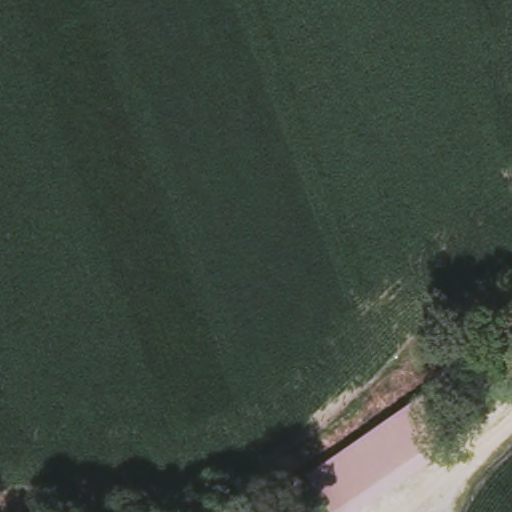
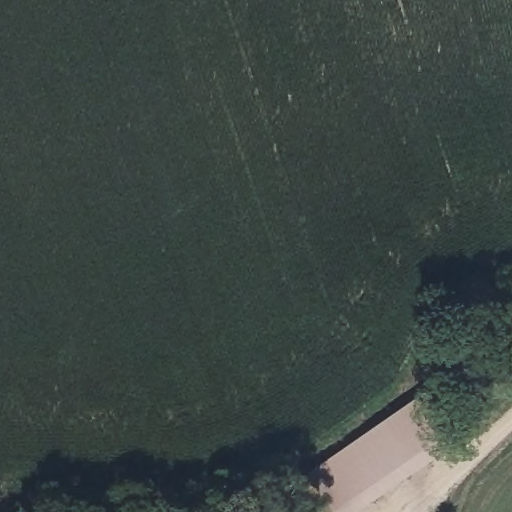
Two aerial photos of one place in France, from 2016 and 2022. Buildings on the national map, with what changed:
unchanged [(462,438),(352,512),(334,512),(309,472),(429,393),(462,438)]

